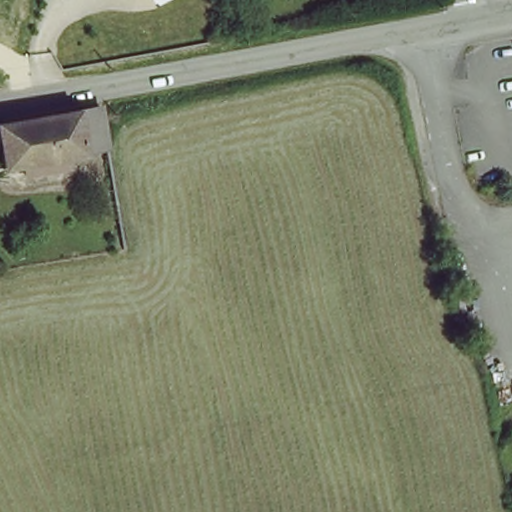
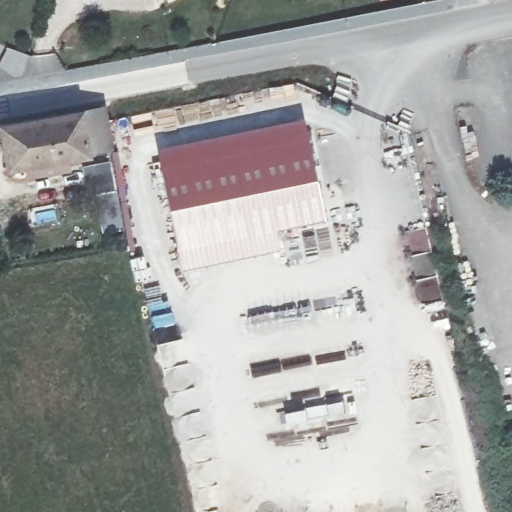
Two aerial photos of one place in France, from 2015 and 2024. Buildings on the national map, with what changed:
new [(303,116),(324,219),(274,230),(279,249),(181,270),(156,148),(303,116)]
unchanged [(100,164),(0,180),(0,134),(28,129),(46,126),(95,117),(100,164)]

